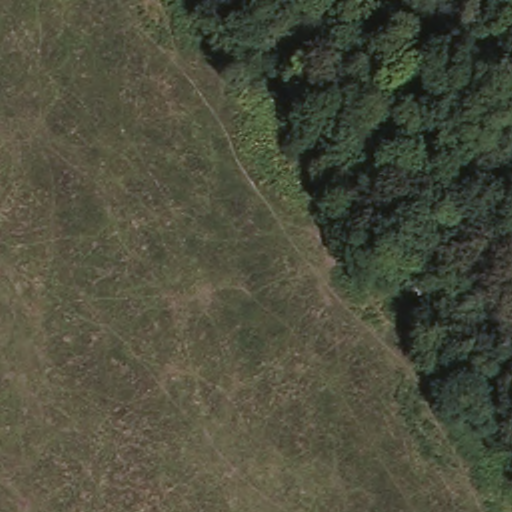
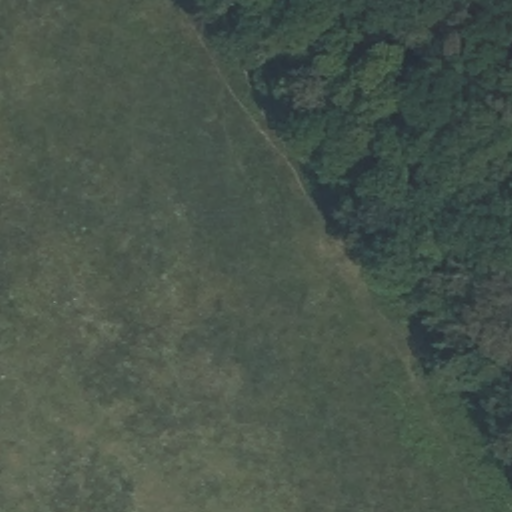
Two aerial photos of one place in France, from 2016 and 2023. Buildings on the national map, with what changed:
[]

